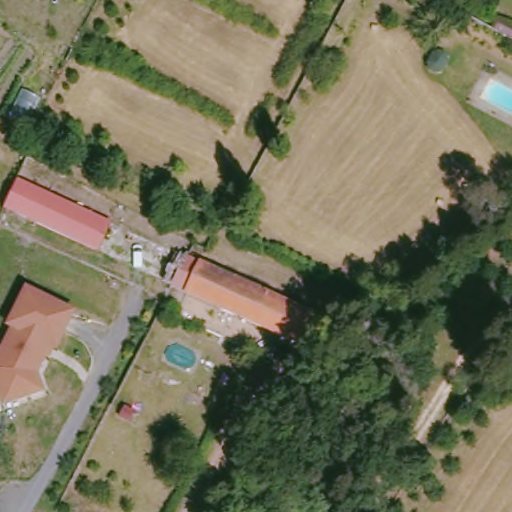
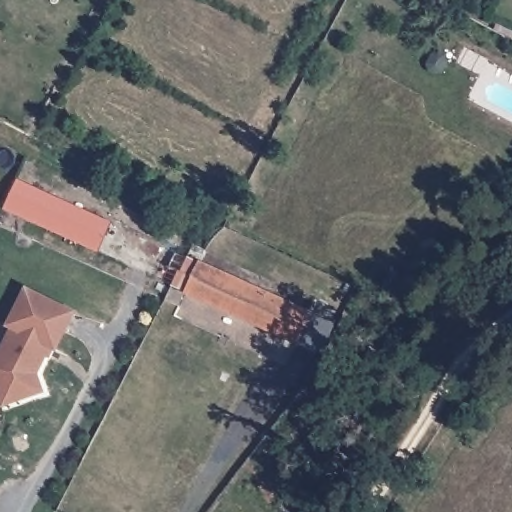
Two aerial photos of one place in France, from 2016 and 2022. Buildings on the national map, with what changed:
unchanged [(112,223),(100,251),(4,207),(17,180),(112,223)]
unchanged [(187,292),(187,289),(172,283),(163,279),(175,253),(185,257),(199,264),(200,261),(310,313),(298,342),(187,292)]
unchanged [(0,351),(13,327),(8,324),(27,288),(73,312),(55,348),(46,343),(42,352),(45,354),(35,372),(41,393),(21,399),(2,403),(0,398),(0,351)]

